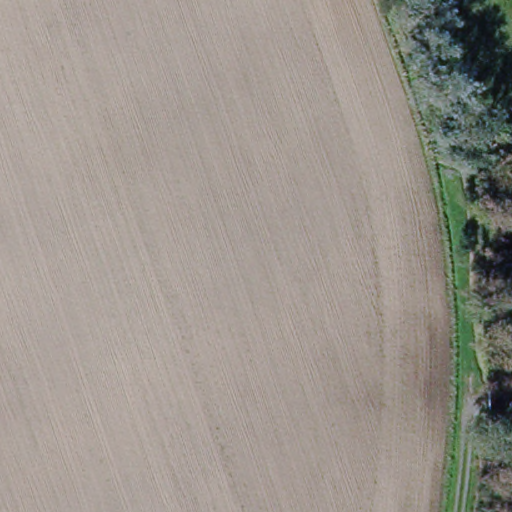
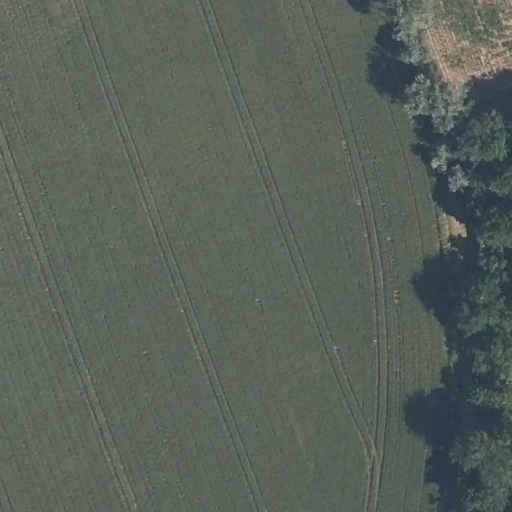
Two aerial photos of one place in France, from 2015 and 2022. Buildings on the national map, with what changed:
[]

